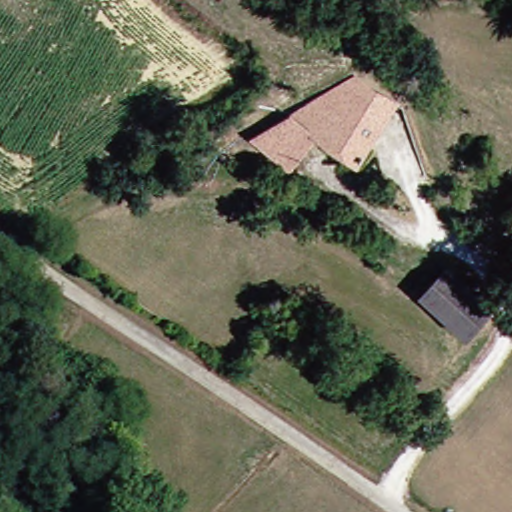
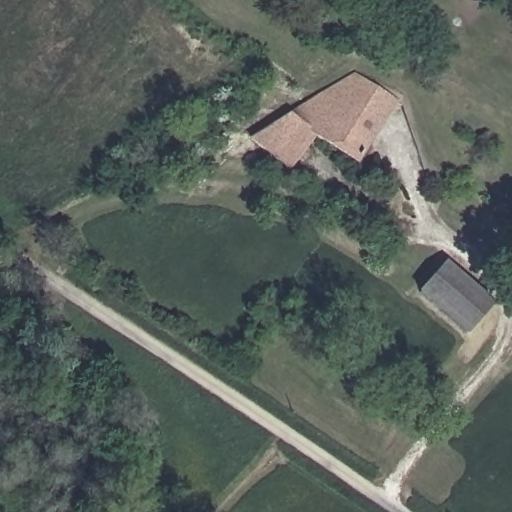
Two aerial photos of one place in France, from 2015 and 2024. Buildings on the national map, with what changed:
unchanged [(345,127),(355,114),(322,95),(355,71),(400,101),(366,140),(345,127)]
unchanged [(353,161),(307,132),(283,168),(246,142),(285,108),(306,85),(322,95),(355,114),(345,127),(366,140),(353,161)]
unchanged [(413,289),(446,262),(486,307),(456,334),(413,289)]

